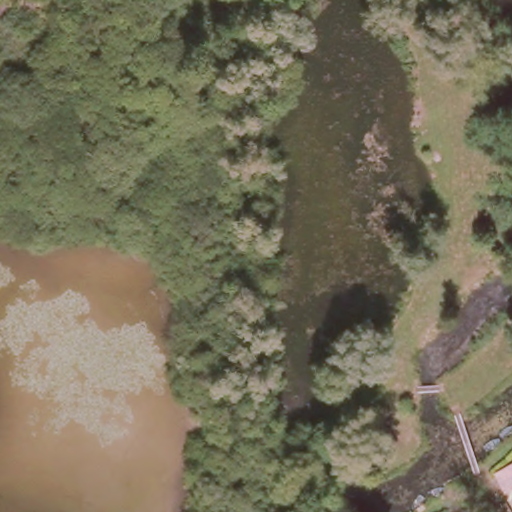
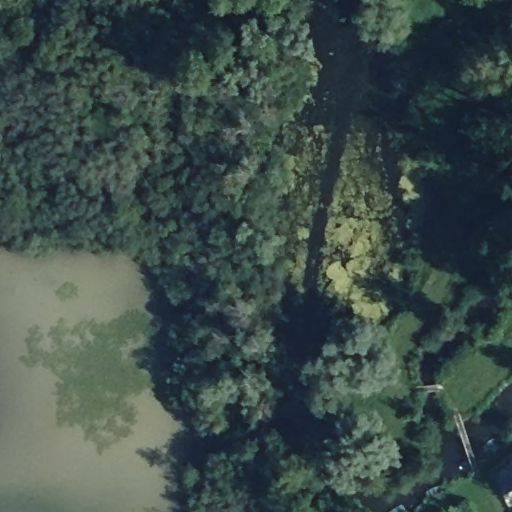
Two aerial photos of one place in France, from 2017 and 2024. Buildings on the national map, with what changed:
unchanged [(240,450),(219,451),(218,435),(240,434),(240,450)]

